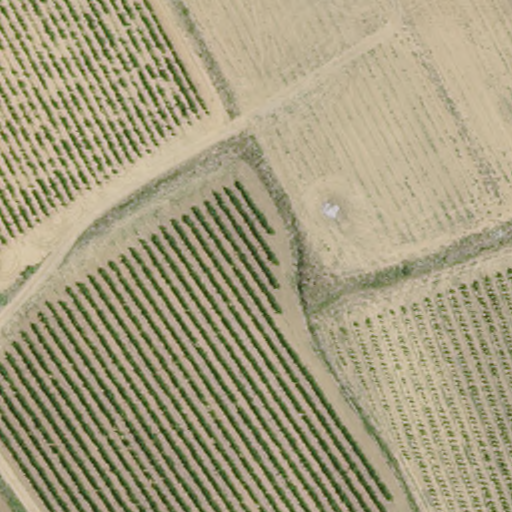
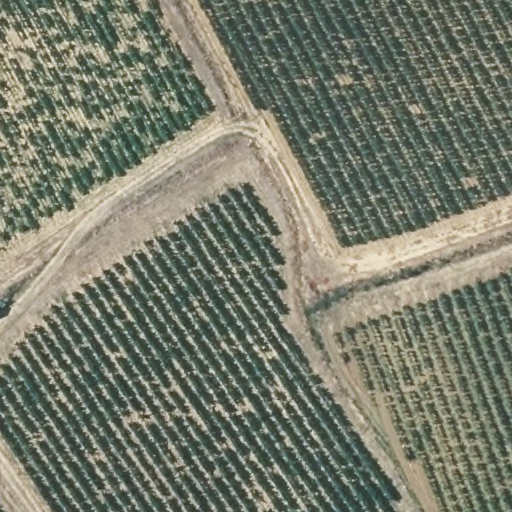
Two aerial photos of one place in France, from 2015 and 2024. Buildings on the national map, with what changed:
[]

